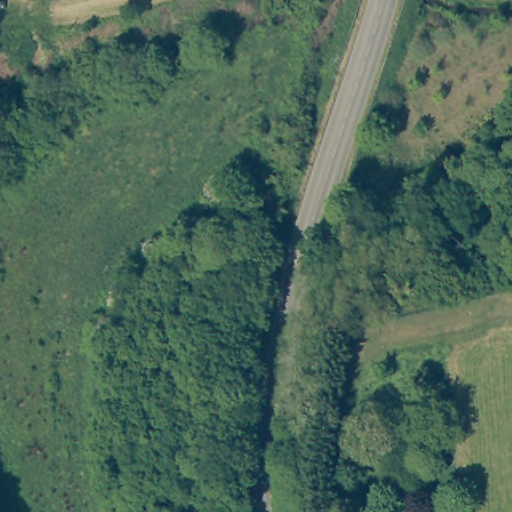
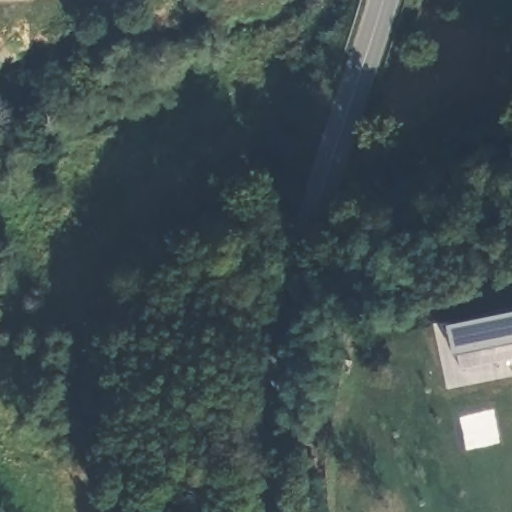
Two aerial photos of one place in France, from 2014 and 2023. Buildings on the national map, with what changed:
new [(462,368),(453,318),(512,307),(512,359),(462,368)]

